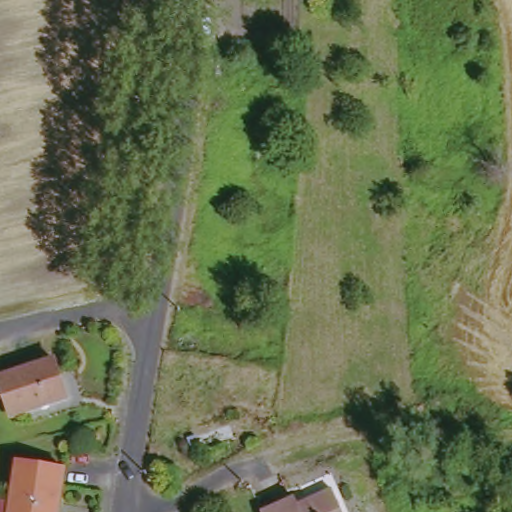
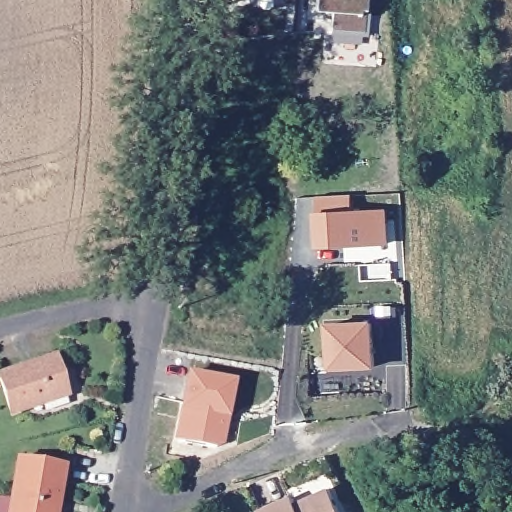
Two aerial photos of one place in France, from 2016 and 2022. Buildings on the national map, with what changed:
new [(369,1),(365,1),(365,18),(368,18),(367,41),(331,39),(332,19),(316,18),(318,0),(369,0),(369,1)]
new [(388,209),(390,245),(318,248),(317,213),(388,209)]
new [(330,370),(327,324),(375,322),(377,369),(330,370)]
unchanged [(61,365),(72,401),(18,419),(6,382),(61,365)]
new [(236,381),(230,419),(225,444),(217,448),(175,440),(180,409),(187,372),(236,381)]
demolished [(234,430),(239,441),(210,454),(205,443),(234,430)]
unchanged [(67,475),(61,508),(61,512),(13,512),(22,464),(67,475)]
unchanged [(307,506),(337,492),(346,512),(281,512),(303,501),(307,506)]

